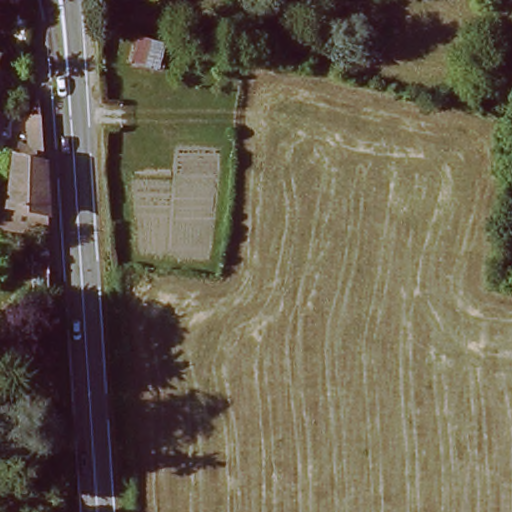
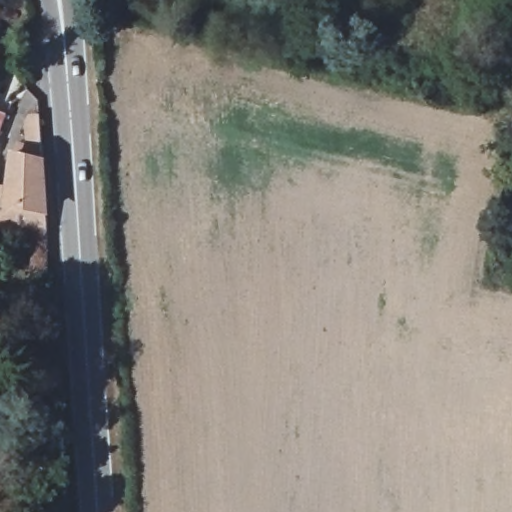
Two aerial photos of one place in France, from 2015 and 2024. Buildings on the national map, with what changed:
unchanged [(0,134),(0,115),(6,117),(0,134)]
unchanged [(48,234),(0,226),(0,184),(9,187),(9,183),(9,151),(46,158),(45,190),(45,215),(48,234)]

